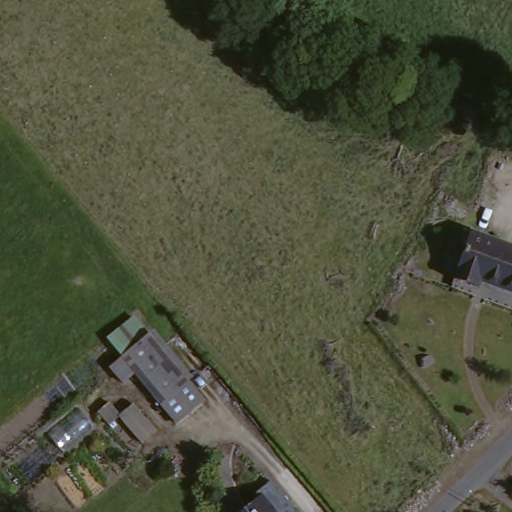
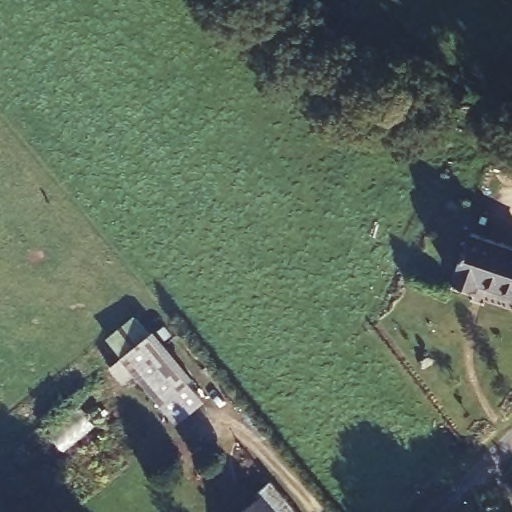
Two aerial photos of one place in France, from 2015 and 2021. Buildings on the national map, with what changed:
unchanged [(512,246),(512,293),(483,282),(479,290),(454,280),(473,232),(512,246)]
unchanged [(130,311),(150,332),(154,330),(196,372),(191,378),(209,396),(178,420),(99,338),(130,311)]
unchanged [(161,433),(143,450),(108,410),(129,390),(161,433)]
unchanged [(274,479),(302,512),(246,512),(255,505),(252,498),(267,487),(266,485),(274,479)]

